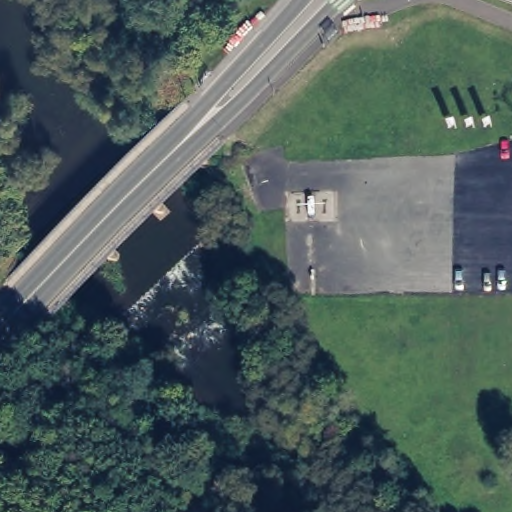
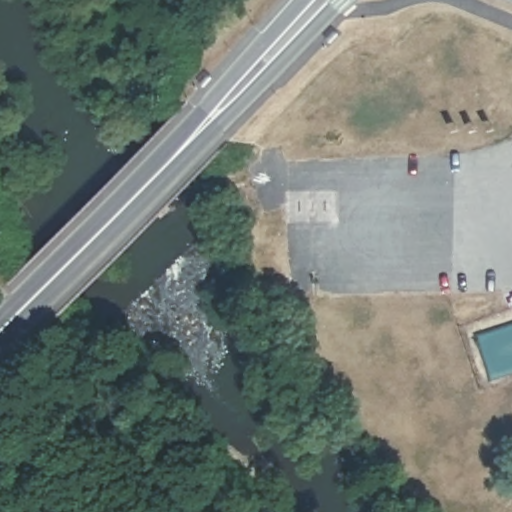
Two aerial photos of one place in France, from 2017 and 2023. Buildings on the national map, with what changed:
[]

